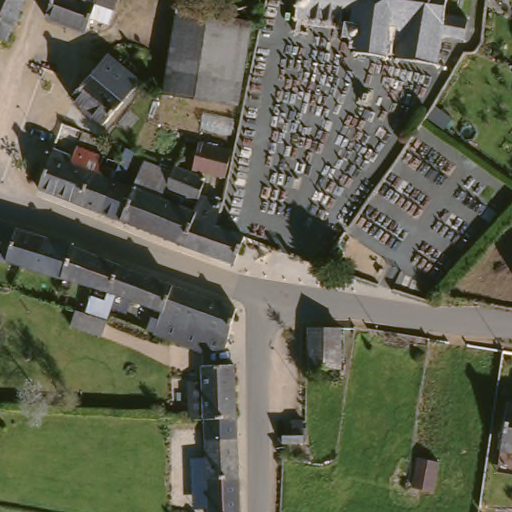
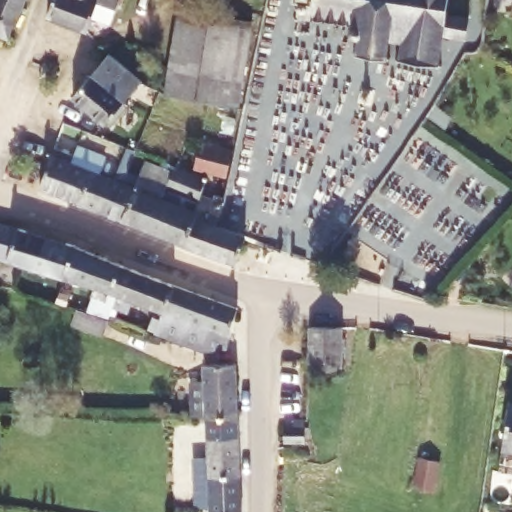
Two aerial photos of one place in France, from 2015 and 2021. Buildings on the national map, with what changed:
unchanged [(9,30),(2,44),(0,43),(0,0),(24,0),(11,31),(9,30)]
unchanged [(107,30),(88,24),(84,35),(46,20),(54,0),(118,0),(107,30)]
unchanged [(169,2),(163,0),(170,0),(169,2)]
unchanged [(443,21),(466,24),(463,45),(440,42),(436,72),(438,75),(434,77),(431,74),(399,69),(394,72),(392,70),(396,66),(398,50),(386,49),(384,61),(387,64),(383,67),(380,64),(356,60),(354,62),(351,59),(354,57),(354,46),(346,45),(347,32),(344,32),(344,29),(336,29),(336,32),(331,31),(331,29),(323,28),(323,32),(319,32),(319,29),(311,29),(311,31),(306,31),(306,28),(294,27),(289,30),(287,26),(289,23),(290,16),(288,12),(291,10),(291,5),(288,4),(289,0),(447,0),(443,21)]
unchanged [(246,24),(231,112),(203,108),(156,101),(171,12),(246,24)]
unchanged [(116,64),(139,83),(138,87),(136,89),(104,129),(71,104),(90,80),(91,79),(106,60),(108,57),(116,64)]
unchanged [(83,61),(78,65),(74,61),(79,57),(83,61)]
unchanged [(83,135),(78,147),(57,140),(62,127),(83,135)]
unchanged [(229,153),(224,180),(191,172),(196,145),(229,153)]
unchanged [(168,169),(174,172),(163,201),(194,213),(182,252),(120,227),(100,219),(37,194),(41,181),(44,172),(52,154),(72,161),(76,152),(112,166),(119,150),(125,152),(134,155),(121,189),(133,195),(143,167),(164,176),(168,169)]
unchanged [(163,201),(174,172),(204,183),(199,201),(220,208),(216,232),(242,241),(241,244),(232,268),(182,252),(194,213),(163,201)]
unchanged [(63,244),(69,246),(71,247),(61,285),(16,271),(5,267),(0,266),(0,227),(16,231),(63,244)]
unchanged [(71,247),(114,266),(105,298),(61,285),(71,247)]
unchanged [(111,316),(109,325),(98,322),(84,317),(89,303),(103,307),(105,298),(114,266),(171,287),(162,317),(138,310),(136,314),(129,312),(126,321),(111,316)]
unchanged [(202,353),(155,340),(162,317),(171,287),(206,300),(234,310),(226,337),(224,348),(202,353)]
unchanged [(337,376),(305,375),(306,335),(338,336),(337,376)]
unchanged [(201,425),(189,425),(188,416),(187,387),(200,386),(199,370),(231,369),(234,423),(236,482),(203,483),(201,425)]
unchanged [(495,451),(503,407),(512,409),(512,454),(495,451)]
unchanged [(301,451),(278,450),(278,442),(289,442),(289,425),(301,426),(301,451)]
unchanged [(431,500),(411,496),(416,471),(436,474),(431,500)]
unchanged [(237,512),(204,512),(203,483),(236,482),(237,512)]

